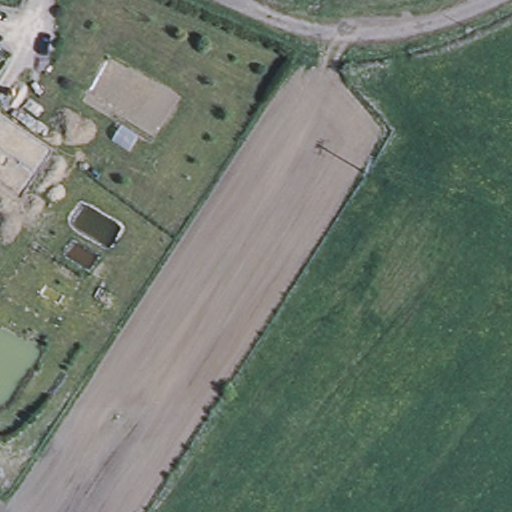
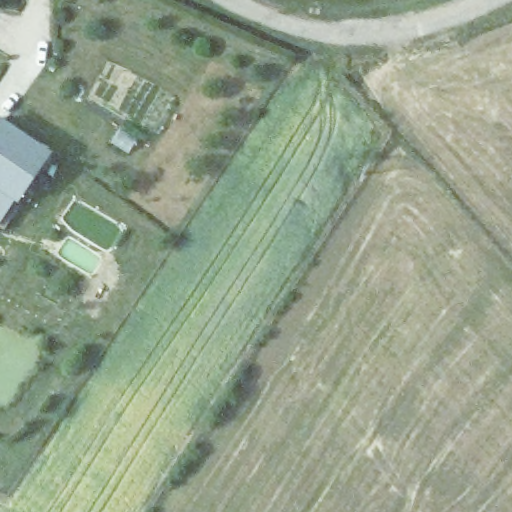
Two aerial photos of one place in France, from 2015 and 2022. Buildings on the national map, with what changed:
new [(19,197),(0,184),(0,120),(49,153),(19,197)]

